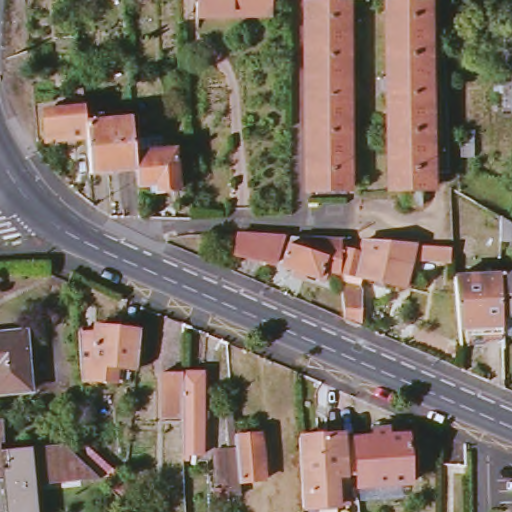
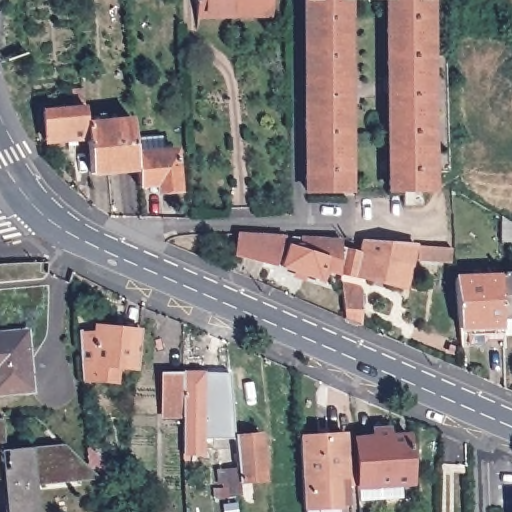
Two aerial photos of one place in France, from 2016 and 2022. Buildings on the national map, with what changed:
unchanged [(243,14),(243,9),(198,9),(198,0),(275,0),(275,14),(243,14)]
unchanged [(350,188),(310,189),(307,0),(348,0),(350,188)]
unchanged [(391,189),(387,0),(428,0),(432,187),(391,189)]
unchanged [(50,141),(47,110),(63,110),(62,104),(70,104),(69,109),(81,108),(80,98),(77,97),(77,91),(86,90),(88,113),(89,122),(90,128),(90,138),(50,141)]
unchanged [(93,172),(92,162),(90,138),(90,128),(89,122),(135,119),(137,151),(139,170),(93,172)]
unchanged [(160,190),(160,183),(140,184),(139,170),(137,151),(179,149),(182,188),(160,190)]
unchanged [(405,204),(405,191),(424,190),(425,203),(405,204)]
unchanged [(512,241),(502,241),(502,216),(512,222),(512,241)]
unchanged [(277,263),(237,253),(242,233),(285,236),(277,263)]
unchanged [(343,248),(343,269),(327,265),(324,277),(285,266),(293,236),(295,236),(344,239),(343,248)]
unchanged [(359,276),(358,283),(365,289),(363,326),(360,325),(349,320),(347,276),(343,276),(343,269),(343,248),(363,252),(364,241),(419,245),(415,264),(408,288),(359,276)]
unchanged [(472,277),(512,274),(512,326),(477,328),(472,277)]
unchanged [(78,331),(97,330),(98,325),(142,329),(138,366),(119,365),(117,378),(100,377),(82,378),(80,363),(78,331)]
unchanged [(25,330),(30,389),(0,393),(0,333),(25,330)]
unchanged [(183,454),(184,417),(162,416),(162,373),(185,373),(185,372),(207,373),(205,454),(183,454)]
unchanged [(272,485),(261,486),(262,481),(247,482),(225,484),(223,450),(237,449),(235,437),(233,416),(242,416),(243,434),(243,436),(267,434),(272,485)]
unchanged [(33,451),(34,450),(65,448),(100,481),(38,485),(40,512),(9,512),(6,481),(0,481),(0,422),(7,422),(2,453),(33,451)]
unchanged [(357,442),(377,441),(376,433),(390,432),(392,440),(410,439),(413,485),(360,489),(357,442)]
unchanged [(302,442),(347,439),(350,479),(340,480),(342,509),(305,511),(305,501),(303,483),(302,442)]
unchanged [(102,478),(114,470),(122,482),(112,489),(102,478)]

